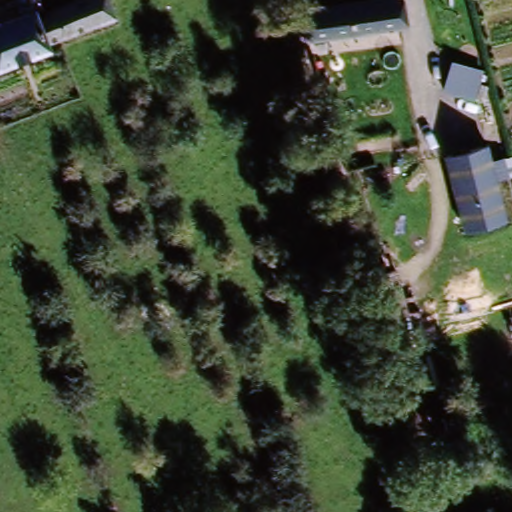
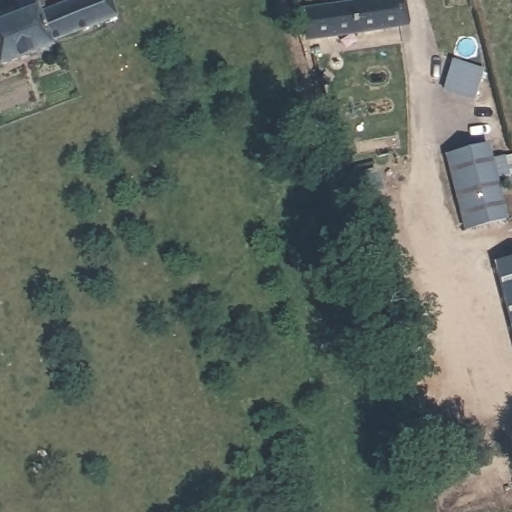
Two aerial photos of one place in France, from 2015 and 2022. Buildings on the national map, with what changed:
unchanged [(49,50),(0,68),(0,20),(13,13),(10,1),(12,0),(41,0),(36,13),(47,46),(49,50)]
unchanged [(113,19),(47,46),(36,13),(73,0),(107,0),(113,19)]
unchanged [(310,42),(303,26),(363,0),(399,0),(405,12),(325,47),(321,37),(310,42)]
unchanged [(474,99),(444,90),(453,60),(483,70),(474,99)]
unchanged [(503,223),(462,231),(445,155),(486,146),(489,163),(505,160),(510,159),(512,159),(512,177),(509,178),(494,180),(503,223)]
new [(512,262),(512,321),(497,266),(512,262)]
unchanged [(387,327),(372,275),(395,271),(405,323),(387,327)]

